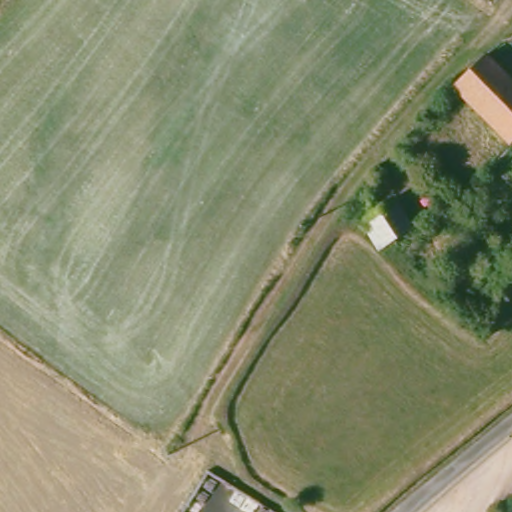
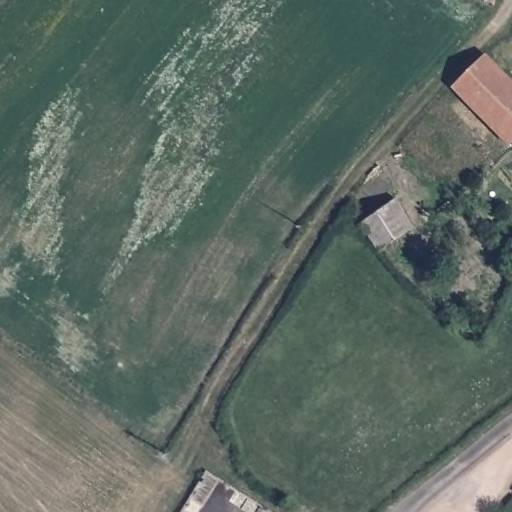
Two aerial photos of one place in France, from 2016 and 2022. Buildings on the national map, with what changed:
unchanged [(478,113),(452,88),(485,54),(511,80),(478,113)]
unchanged [(511,144),(478,113),(511,80),(512,81),(512,144),(511,144)]
unchanged [(392,198),(411,227),(380,249),(362,217),(392,198)]

